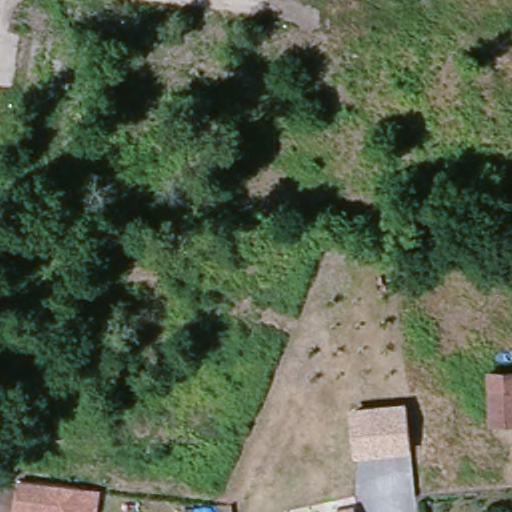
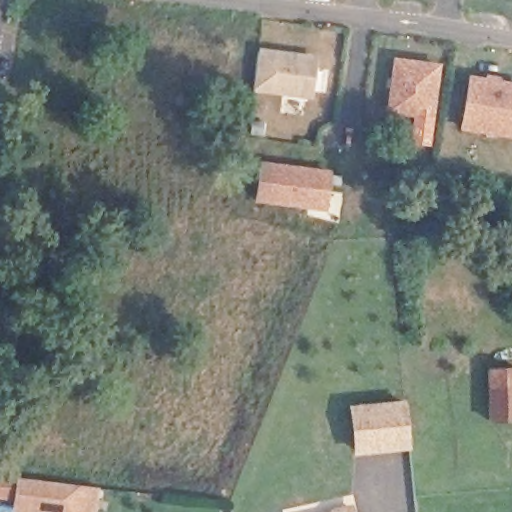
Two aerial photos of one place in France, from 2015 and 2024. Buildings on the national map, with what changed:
new [(319,55),(313,99),(254,92),(259,47),(319,55)]
new [(442,62),(435,120),(385,113),(392,55),(442,62)]
new [(512,139),(460,131),(469,73),(512,81),(512,139)]
new [(331,168),(327,211),(254,202),(259,160),(331,168)]
unchanged [(512,373),(512,419),(494,419),(494,373),(512,373)]
unchanged [(359,447),(355,405),(407,400),(411,442),(359,447)]
unchanged [(99,489),(97,512),(21,512),(14,511),(15,478),(99,489)]
unchanged [(353,512),(333,512),(351,507),(353,512)]

